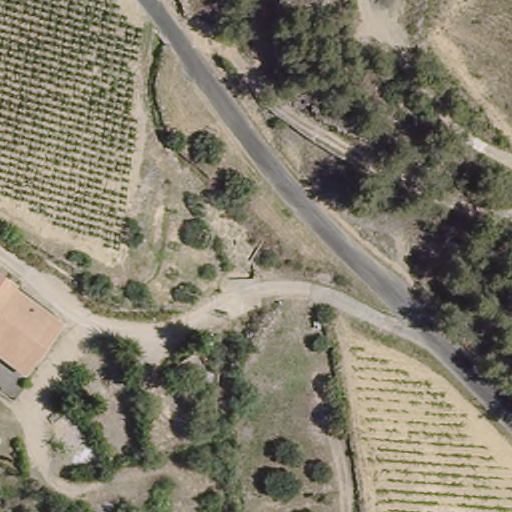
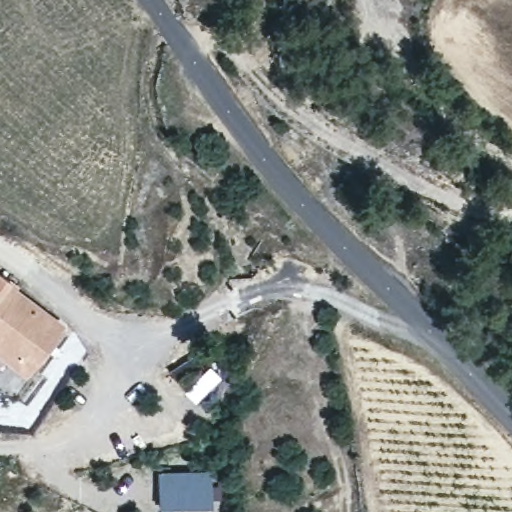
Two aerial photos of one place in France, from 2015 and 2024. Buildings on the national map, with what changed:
unchanged [(65,326),(28,380),(0,360),(0,279),(65,326)]
new [(210,471),(210,507),(157,508),(159,472),(210,471)]

